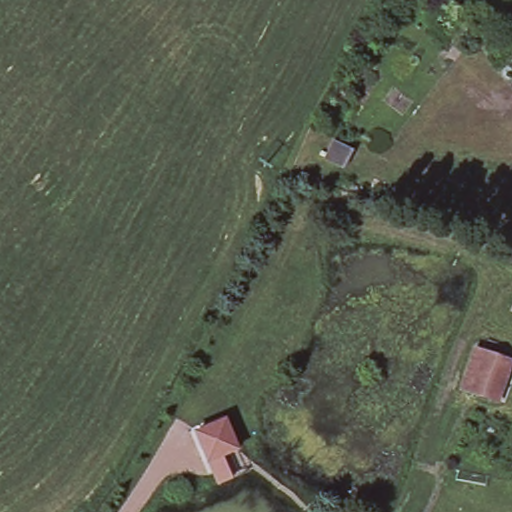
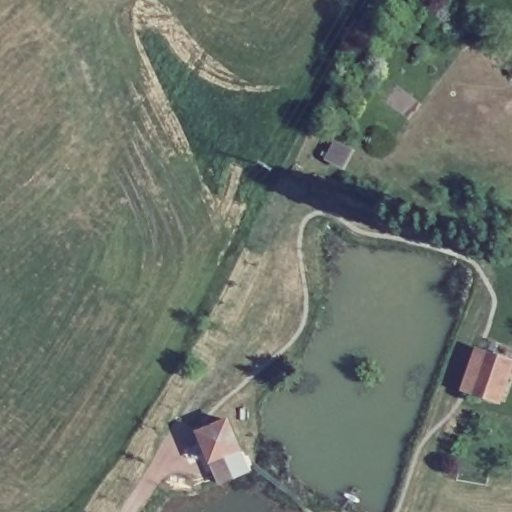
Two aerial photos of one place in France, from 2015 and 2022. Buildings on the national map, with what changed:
unchanged [(503,355),(491,394),(482,390),(464,385),(476,347),(500,354),(503,355)]
unchanged [(233,478),(215,484),(205,460),(194,432),(230,419),(240,450),(225,454),(233,478)]

